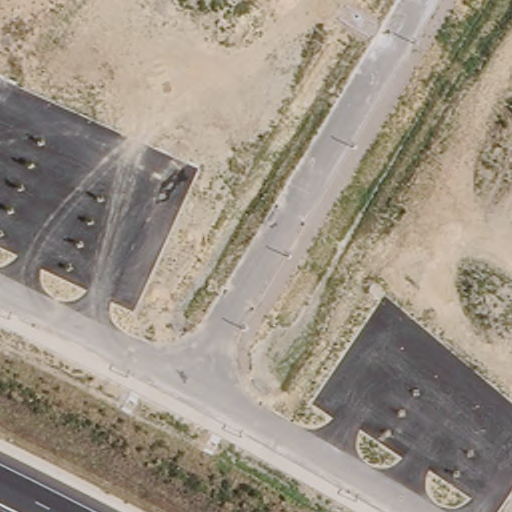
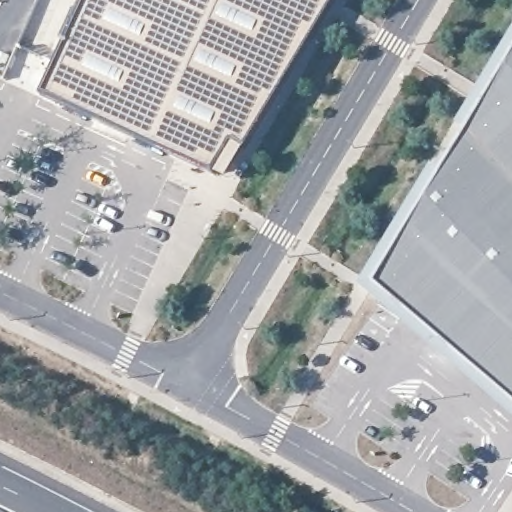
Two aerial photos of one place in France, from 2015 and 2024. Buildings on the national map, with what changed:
new [(213,174),(41,95),(85,0),(337,0),(246,151),(228,180),(213,174)]
new [(361,286),(433,166),(443,171),(469,129),(459,123),(512,34),(512,413),(361,286)]

